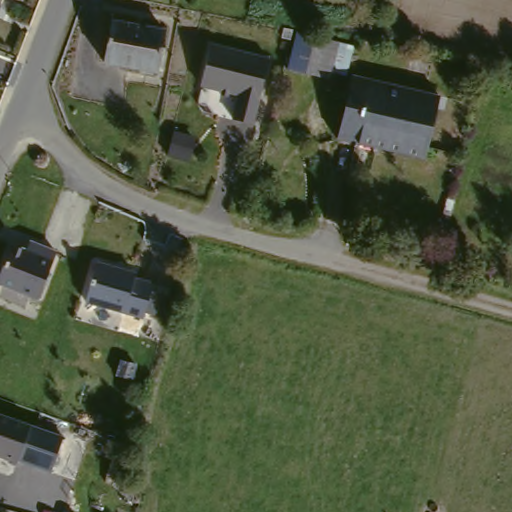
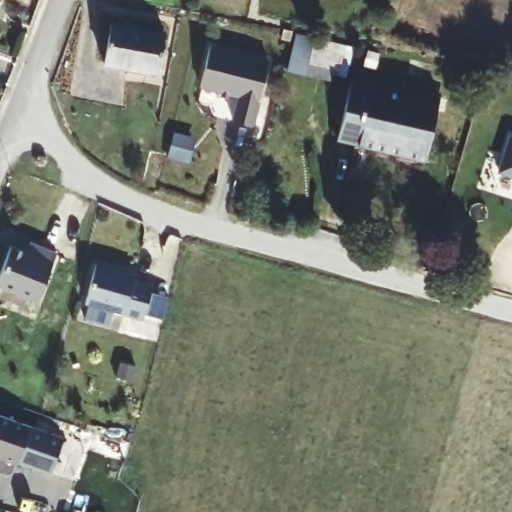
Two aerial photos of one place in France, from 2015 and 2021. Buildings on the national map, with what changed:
unchanged [(129,70),(98,62),(107,22),(161,35),(151,75),(129,70)]
unchanged [(342,80),(327,77),(326,83),(286,75),(293,42),(333,48),(348,51),(342,80)]
unchanged [(220,96),(221,92),(201,88),(208,47),(262,56),(251,122),(233,119),(238,94),(228,92),(227,97),(220,96)]
unchanged [(357,147),(335,143),(348,87),(432,106),(419,152),(417,160),(357,147)]
unchanged [(174,132),(193,137),(184,162),(165,157),(174,132)]
new [(497,169),(509,135),(512,136),(512,174),(497,169)]
unchanged [(46,305),(45,305),(4,289),(19,251),(45,261),(48,252),(54,255),(64,258),(46,305)]
unchanged [(128,283),(148,288),(138,322),(102,312),(80,306),(91,267),(110,272),(130,278),(128,283)]
unchanged [(41,433),(62,441),(57,456),(50,477),(17,466),(16,468),(0,463),(0,420),(13,424),(13,425),(41,433)]

